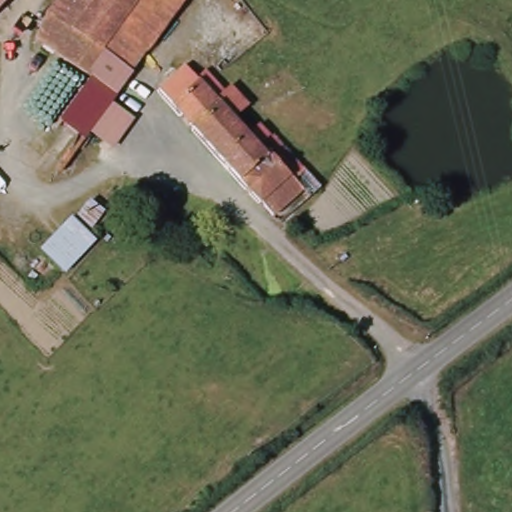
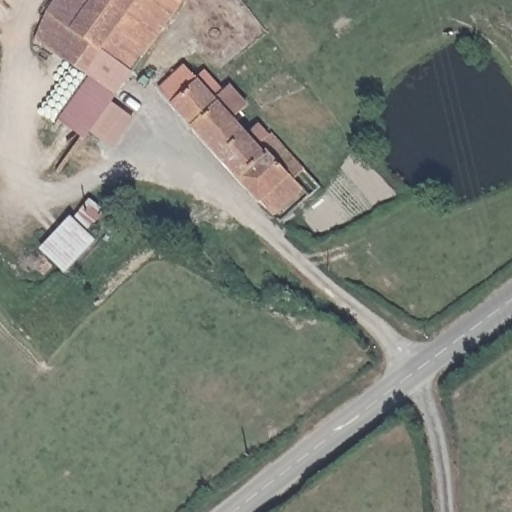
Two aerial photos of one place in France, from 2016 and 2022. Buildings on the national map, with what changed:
unchanged [(0,0),(8,0),(0,8),(0,0)]
unchanged [(137,65),(130,73),(49,14),(58,0),(181,0),(182,1),(137,65)]
unchanged [(49,14),(130,73),(116,93),(114,95),(90,78),(35,39),(49,14)]
unchanged [(159,89),(185,66),(197,79),(207,71),(223,94),(229,89),(245,107),(232,119),(244,133),(219,156),(159,89)]
unchanged [(90,78),(114,95),(114,103),(136,118),(117,147),(91,134),(86,143),(54,124),(90,78)]
unchanged [(244,133),(248,138),(260,126),(267,135),(270,134),(279,144),(320,189),(312,196),(309,199),(302,192),(274,215),(249,187),(245,184),(219,156),(244,133)]
unchanged [(71,264),(50,244),(79,216),(100,234),(71,264)]

